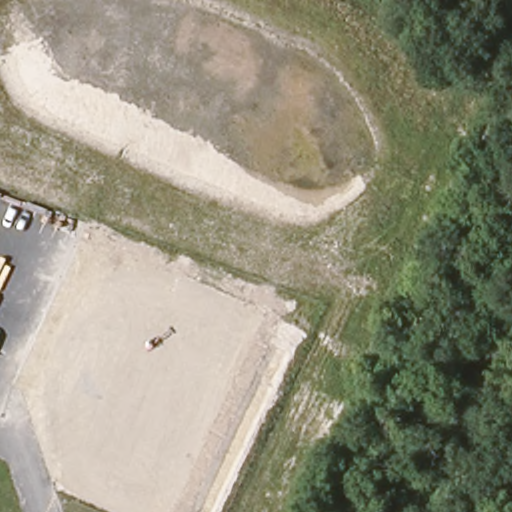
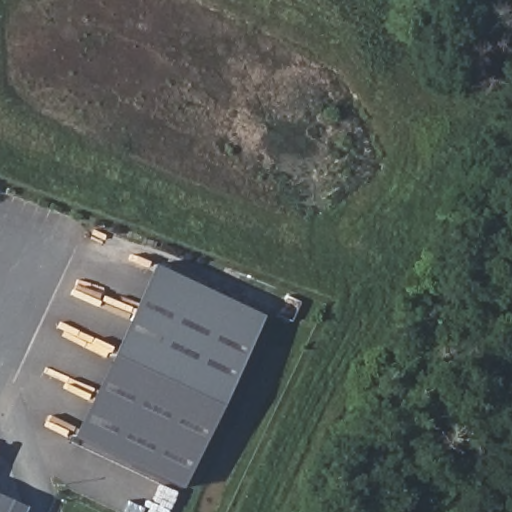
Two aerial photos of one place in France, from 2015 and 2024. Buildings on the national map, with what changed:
new [(179,490),(70,437),(151,266),(262,316),(179,490)]
new [(24,512),(23,512),(0,512),(0,500),(24,512)]

